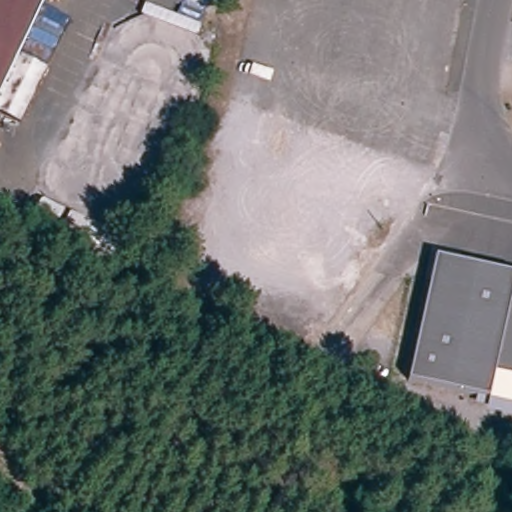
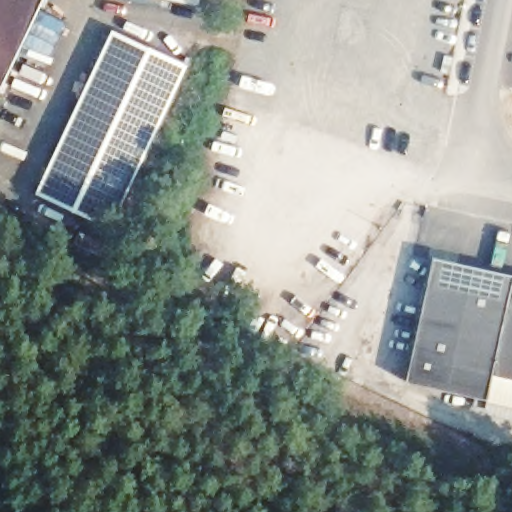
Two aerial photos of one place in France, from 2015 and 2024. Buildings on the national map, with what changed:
unchanged [(48,0),(19,60),(0,101),(0,0),(48,0)]
new [(179,0),(201,0),(201,4),(179,0)]
new [(80,92),(111,28),(188,65),(112,227),(35,194),(80,92)]
unchanged [(19,60),(45,72),(17,129),(0,120),(0,101),(19,60)]
unchanged [(512,273),(512,376),(496,373),(491,398),(410,382),(433,260),(434,257),(436,257),(512,273)]

